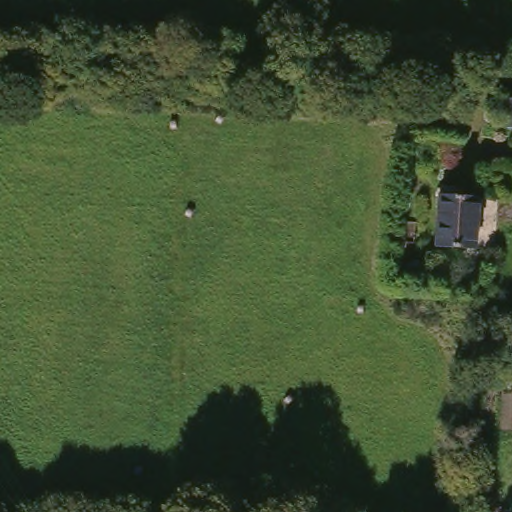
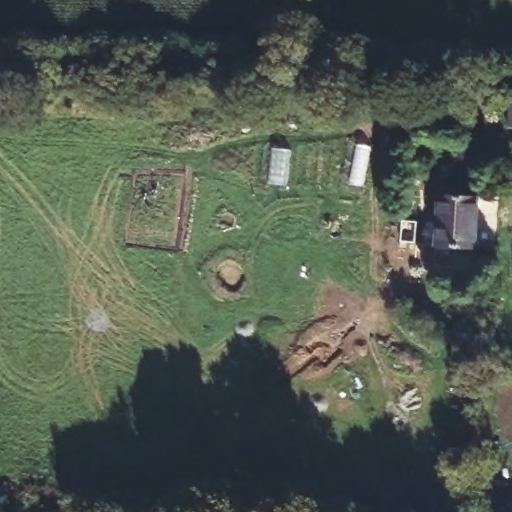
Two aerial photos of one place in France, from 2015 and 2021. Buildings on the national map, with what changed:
unchanged [(505,134),(507,102),(512,102),(512,134),(505,134)]
unchanged [(431,252),(435,200),(475,203),(470,255),(431,252)]

